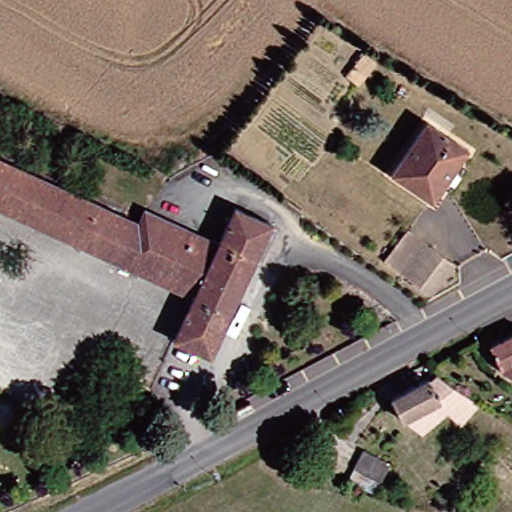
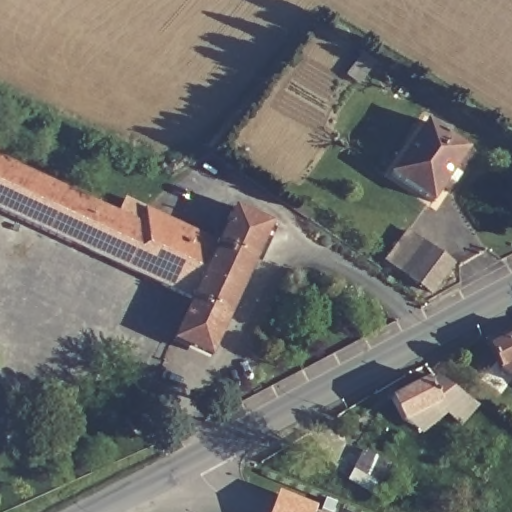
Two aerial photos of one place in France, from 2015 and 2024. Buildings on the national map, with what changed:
unchanged [(432,205),(392,178),(428,125),(468,153),(432,205)]
unchanged [(146,207),(218,244),(236,212),(271,228),(209,358),(170,340),(190,297),(0,211),(0,157),(140,221),(146,207)]
unchanged [(426,283),(404,267),(424,241),(446,257),(426,283)]
unchanged [(492,346),(512,335),(512,373),(492,346)]
unchanged [(479,405),(465,431),(445,421),(424,436),(395,411),(392,402),(429,382),(433,387),(442,382),(479,405)]
unchanged [(356,449),(386,463),(377,482),(345,467),(356,449)]
new [(278,492),(315,508),(314,512),(270,512),(278,492)]

